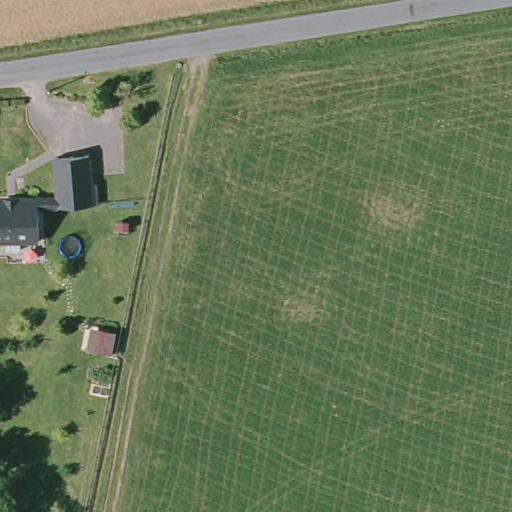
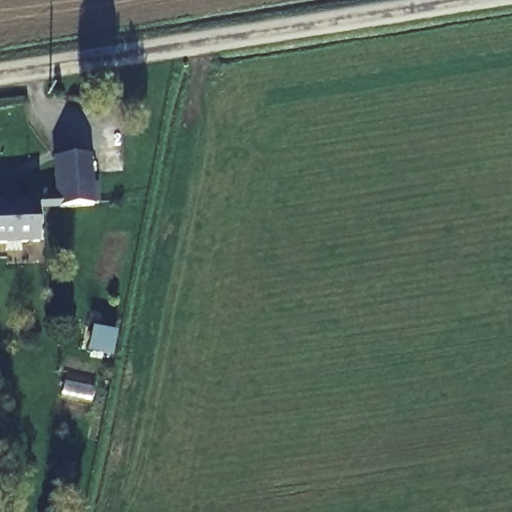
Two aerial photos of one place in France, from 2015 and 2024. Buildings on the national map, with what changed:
unchanged [(86,151),(92,203),(57,207),(50,155),(86,151)]
unchanged [(29,201),(32,237),(18,238),(18,249),(2,250),(2,242),(0,242),(0,203),(29,201)]

